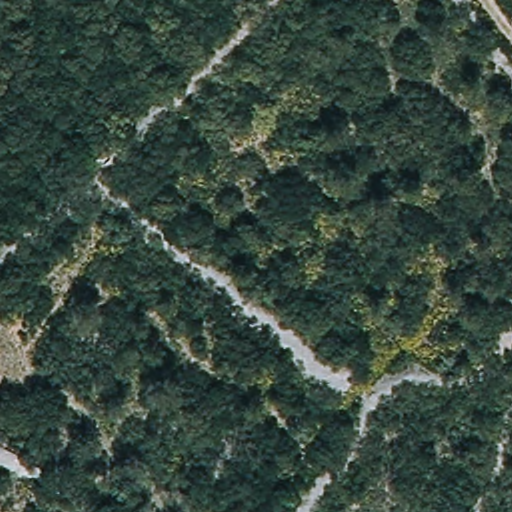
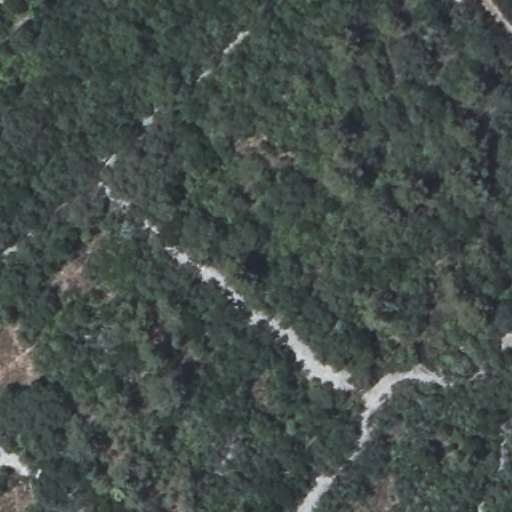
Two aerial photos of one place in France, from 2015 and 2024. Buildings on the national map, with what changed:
[]

